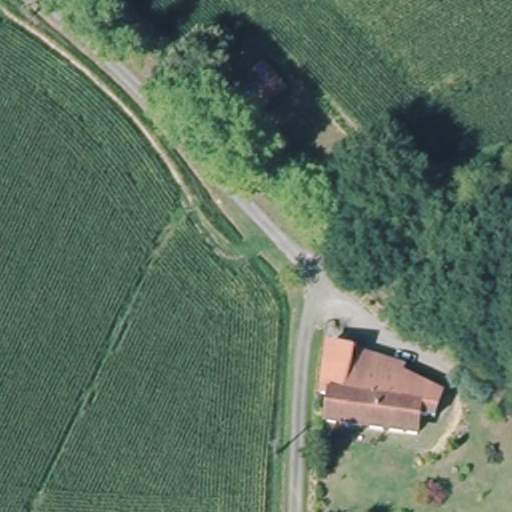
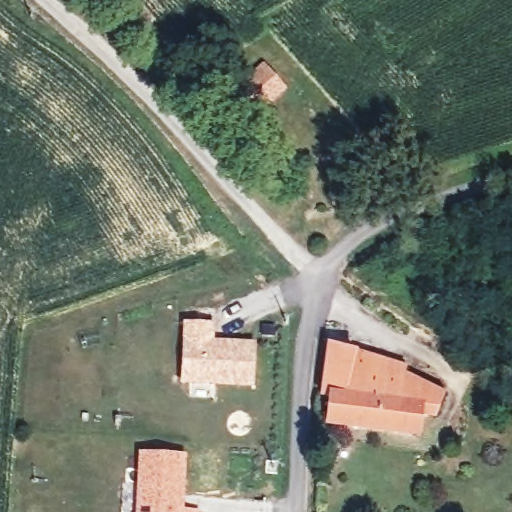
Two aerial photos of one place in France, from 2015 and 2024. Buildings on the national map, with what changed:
unchanged [(255,104),(238,82),(256,67),(277,87),(255,104)]
new [(213,323),(212,340),(255,342),(253,387),(179,384),(182,322),(213,323)]
unchanged [(402,373),(411,387),(429,397),(421,423),(403,417),(395,441),(316,414),(318,386),(308,387),(323,336),(402,373)]
new [(185,454),(183,508),(198,510),(198,512),(135,512),(137,451),(185,454)]

